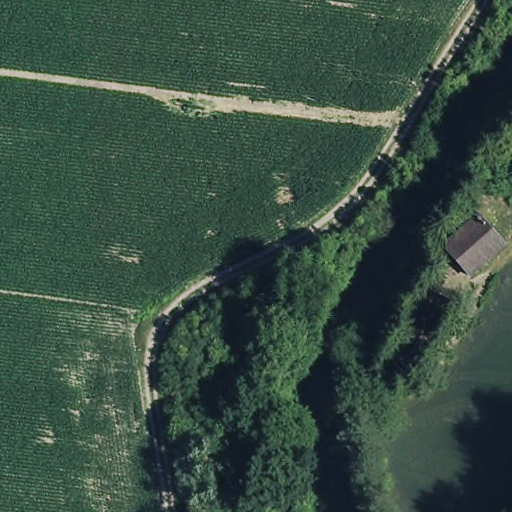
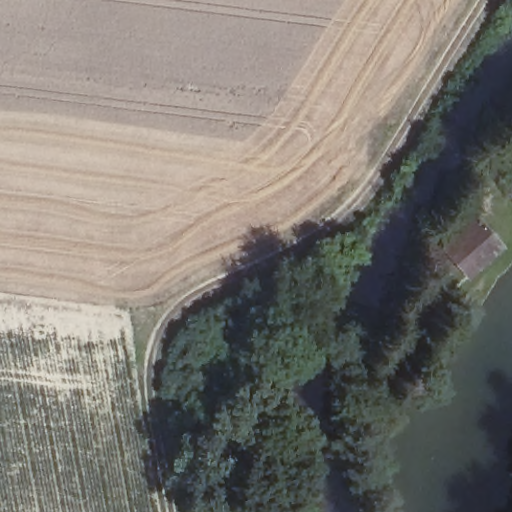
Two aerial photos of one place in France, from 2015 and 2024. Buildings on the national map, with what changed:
unchanged [(508,240),(477,275),(448,246),(480,213),(508,240)]

